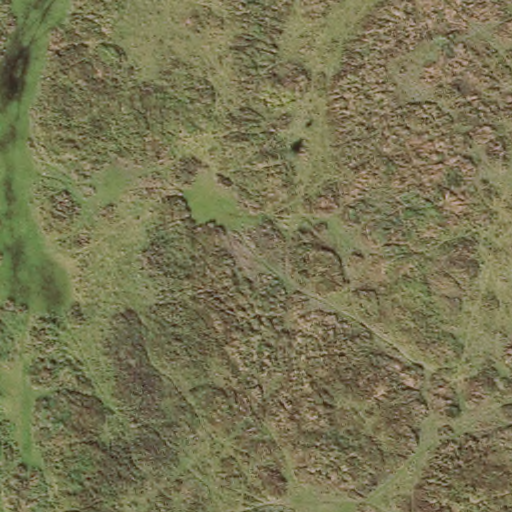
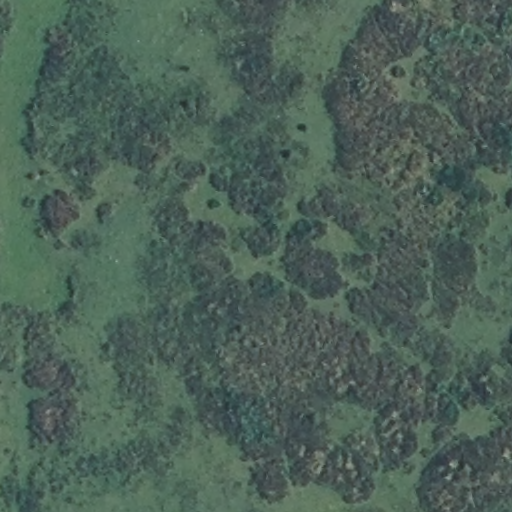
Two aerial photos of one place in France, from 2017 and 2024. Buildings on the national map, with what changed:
[]

